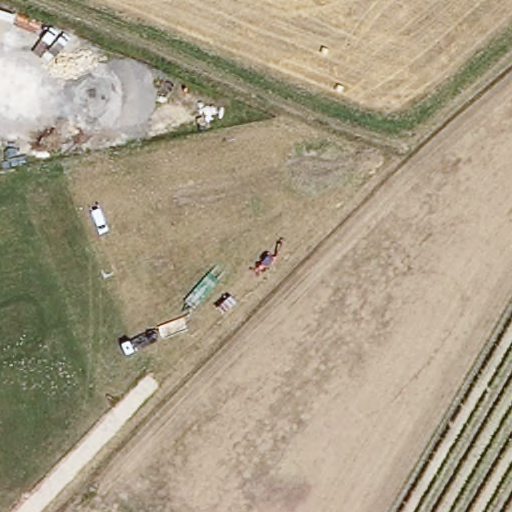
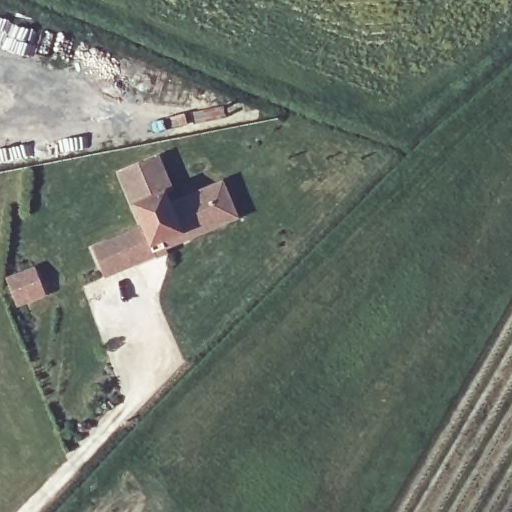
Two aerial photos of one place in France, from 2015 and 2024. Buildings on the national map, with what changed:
new [(123,174),(161,159),(175,192),(168,195),(172,207),(211,191),(226,186),(239,221),(186,242),(165,250),(163,245),(153,249),(157,256),(105,277),(94,249),(144,229),(123,174)]
new [(36,271),(44,292),(19,302),(11,281),(36,271)]

